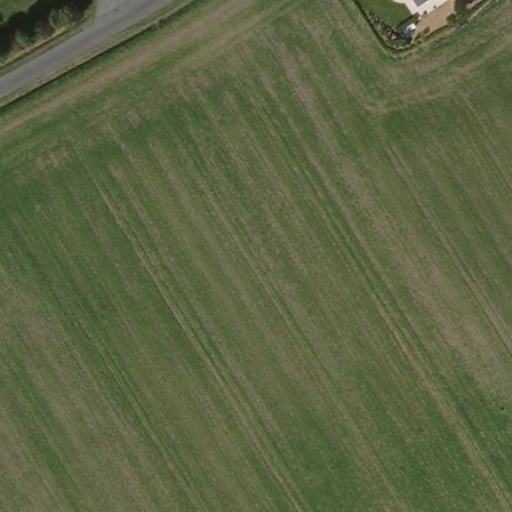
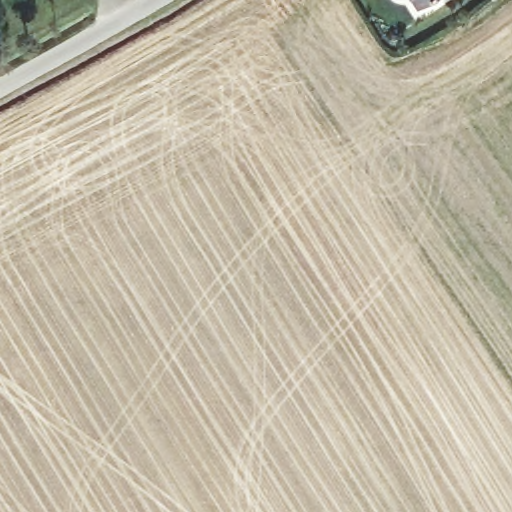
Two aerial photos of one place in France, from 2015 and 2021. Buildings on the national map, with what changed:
unchanged [(417,8),(411,0),(430,0),(417,8)]

